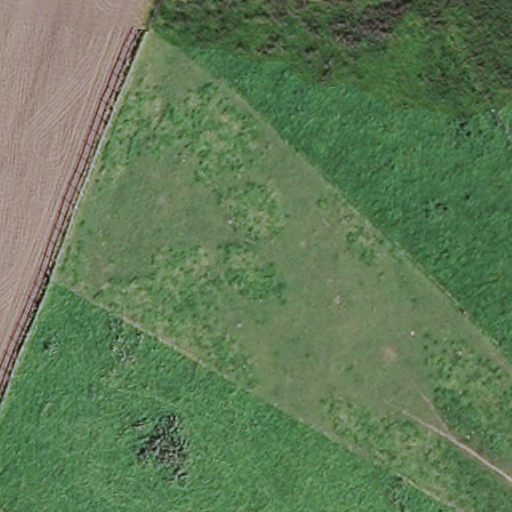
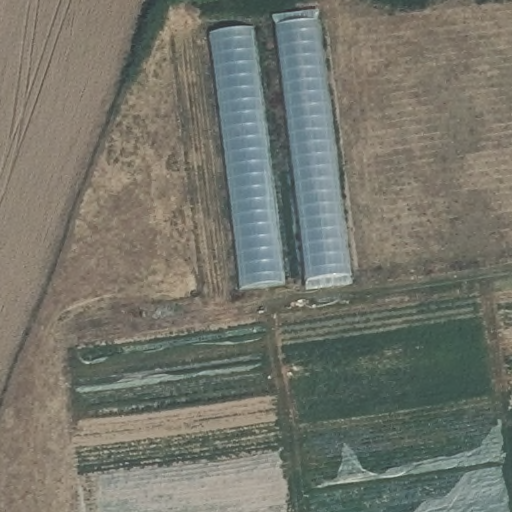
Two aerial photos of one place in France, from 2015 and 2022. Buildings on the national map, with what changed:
new [(318,21),(349,276),(310,281),(276,27),(318,21)]
new [(246,24),(277,280),(237,285),(205,30),(246,24)]

